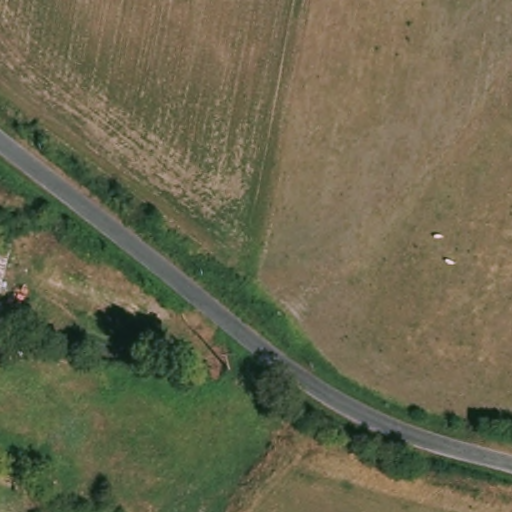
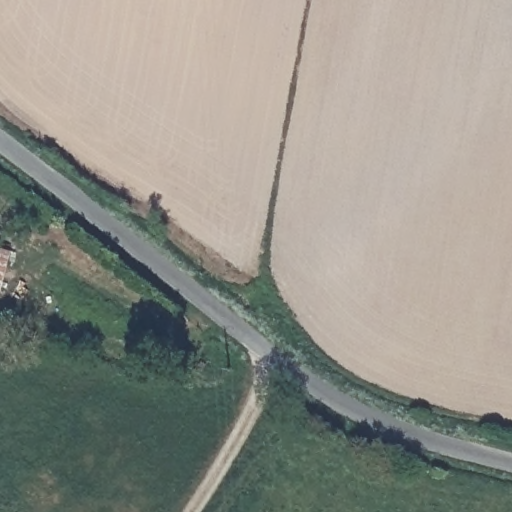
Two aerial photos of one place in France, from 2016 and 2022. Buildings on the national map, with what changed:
unchanged [(5,292),(0,290),(0,249),(14,252),(5,292)]

